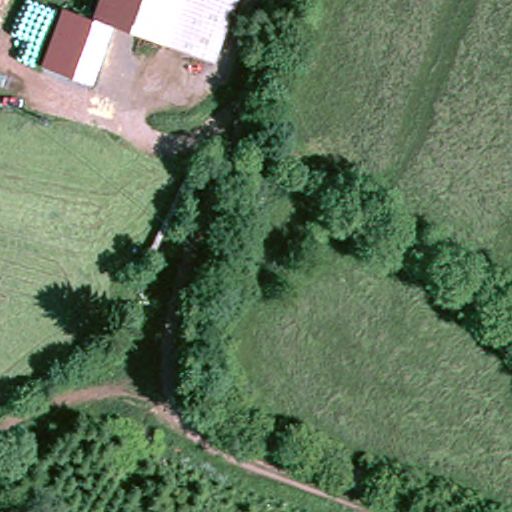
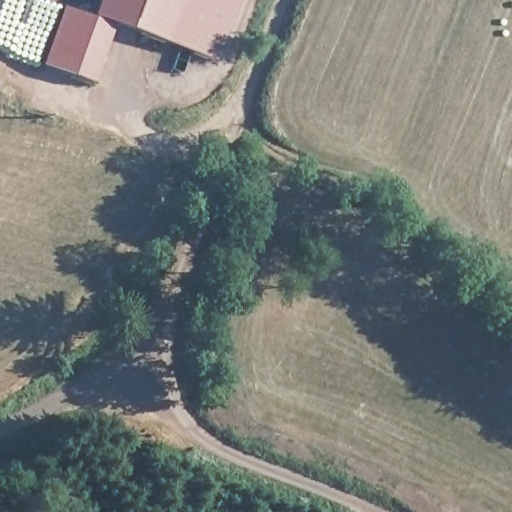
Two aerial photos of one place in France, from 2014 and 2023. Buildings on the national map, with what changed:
unchanged [(218,56),(97,17),(103,0),(237,0),(218,56)]
unchanged [(113,29),(93,89),(38,68),(63,7),(113,29)]

